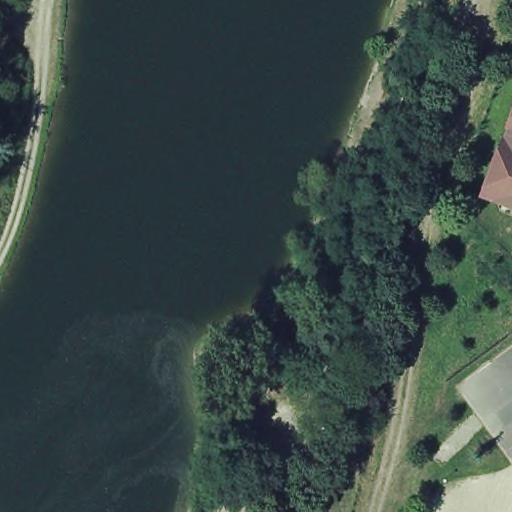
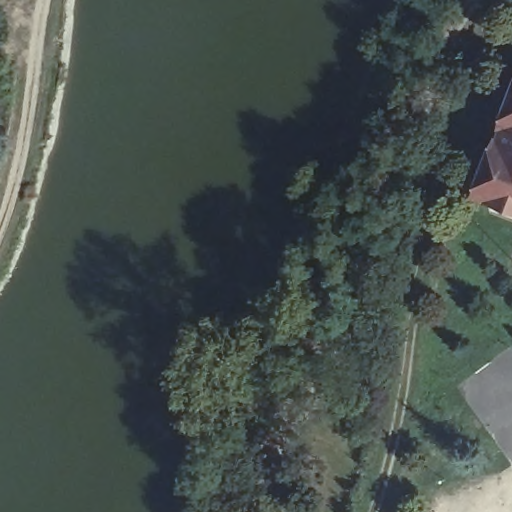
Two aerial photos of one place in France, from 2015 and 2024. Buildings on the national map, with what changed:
unchanged [(512,204),(486,195),(512,125),(512,204)]

